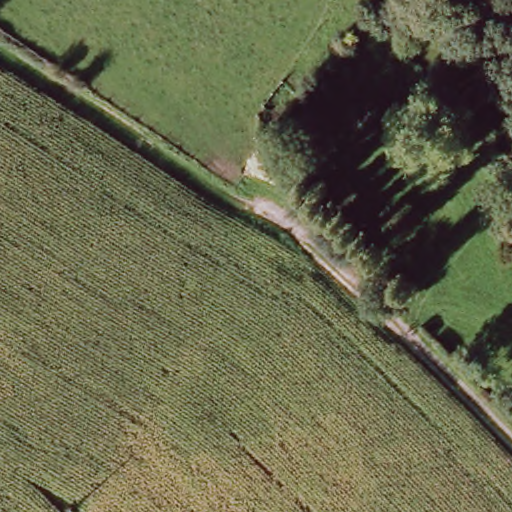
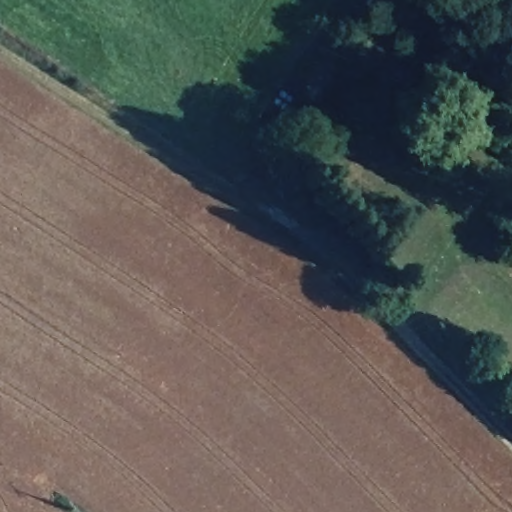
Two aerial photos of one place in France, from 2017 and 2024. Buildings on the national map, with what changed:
unchanged [(512,169),(512,177),(507,182),(489,166),(499,156),(512,169)]

